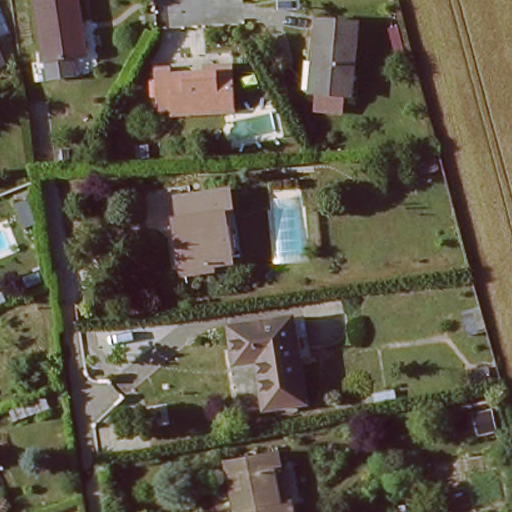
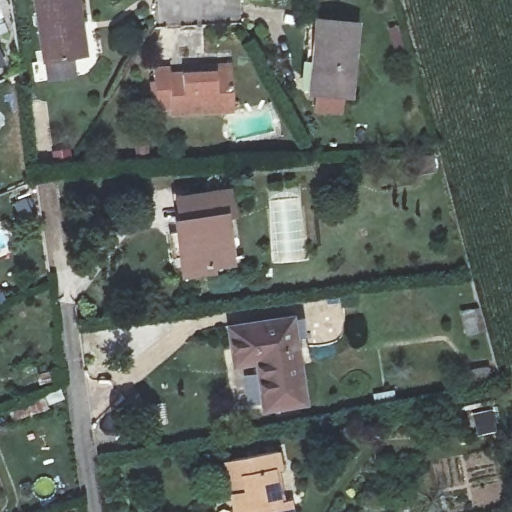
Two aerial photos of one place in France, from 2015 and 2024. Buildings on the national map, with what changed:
unchanged [(76,23),(80,58),(44,63),(35,0),(79,0),(82,22),(76,23)]
unchanged [(354,23),(349,96),(306,93),(309,51),(304,51),(306,20),(354,23)]
unchanged [(163,71),(164,77),(226,73),(230,113),(170,118),(168,111),(152,111),(149,73),(163,71)]
unchanged [(230,220),(221,221),(226,262),(206,265),(207,271),(179,275),(173,228),(178,227),(175,203),(186,202),(227,196),(230,220)]
unchanged [(38,227),(25,233),(14,207),(27,201),(38,227)]
unchanged [(465,337),(460,310),(479,305),(486,331),(465,337)]
unchanged [(261,413),(259,401),(252,364),(232,368),(225,330),(287,320),(300,395),(302,406),(261,413)]
unchanged [(467,370),(466,368),(482,365),(483,367),(485,379),(469,382),(467,370)]
unchanged [(496,394),(505,431),(464,442),(456,403),(496,394)]
unchanged [(230,494),(227,479),(223,462),(278,451),(281,468),(273,470),(280,502),(289,500),(291,512),(233,512),(230,494)]

